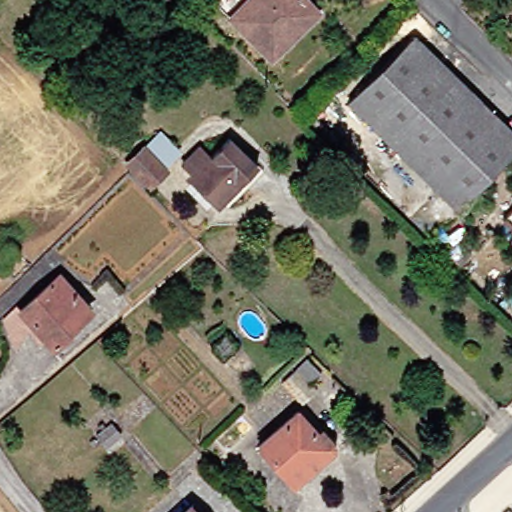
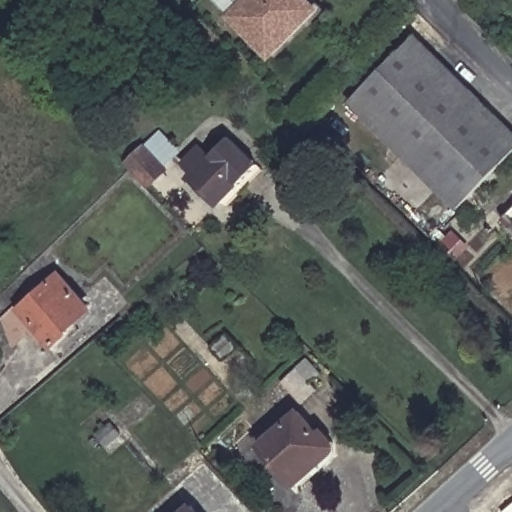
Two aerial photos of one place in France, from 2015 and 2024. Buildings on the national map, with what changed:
unchanged [(266,61),(210,5),(215,0),(299,0),(313,15),(266,61)]
unchanged [(354,107),(417,43),(512,133),(512,153),(457,207),(354,107)]
unchanged [(123,166),(157,134),(175,153),(162,167),(164,171),(144,190),(123,166)]
unchanged [(181,175),(220,137),(247,165),(209,202),(181,175)]
unchanged [(497,221),(512,206),(512,235),(497,221)]
unchanged [(16,250),(0,266),(0,234),(1,234),(16,250)]
unchanged [(4,315),(22,299),(26,303),(57,275),(92,316),(77,328),(82,336),(64,352),(56,343),(49,346),(39,335),(23,347),(4,315)]
unchanged [(207,340),(223,325),(236,340),(220,353),(207,340)]
unchanged [(338,448),(295,489),(291,485),(256,446),(295,412),(316,435),(323,430),(338,448)]
unchanged [(105,452),(121,437),(131,449),(117,464),(105,452)]
unchanged [(192,512),(177,512),(186,505),(192,512)]

